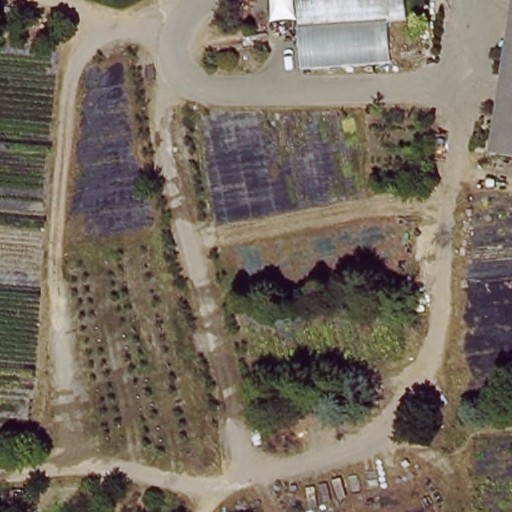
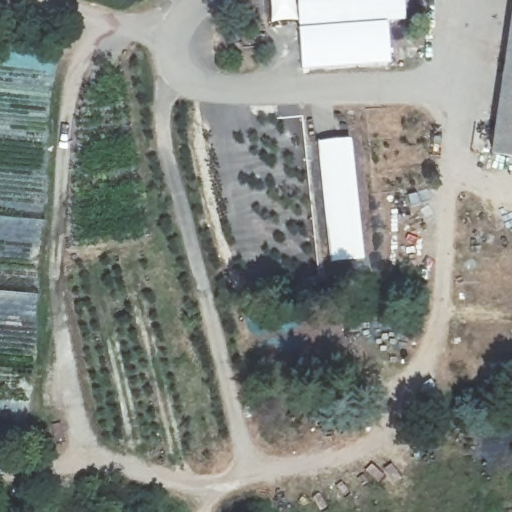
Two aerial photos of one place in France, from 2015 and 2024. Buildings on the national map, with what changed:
unchanged [(397,25),(400,69),(310,74),(306,24),(280,28),(277,0),(414,0),(417,21),(397,25)]
unchanged [(500,149),(512,72),(512,151),(500,149)]
new [(364,260),(329,264),(317,143),(350,139),(364,260)]
unchanged [(21,512),(6,512),(9,492),(24,493),(21,512)]

